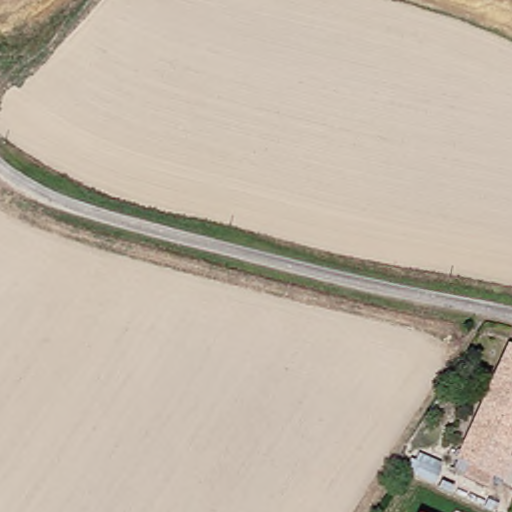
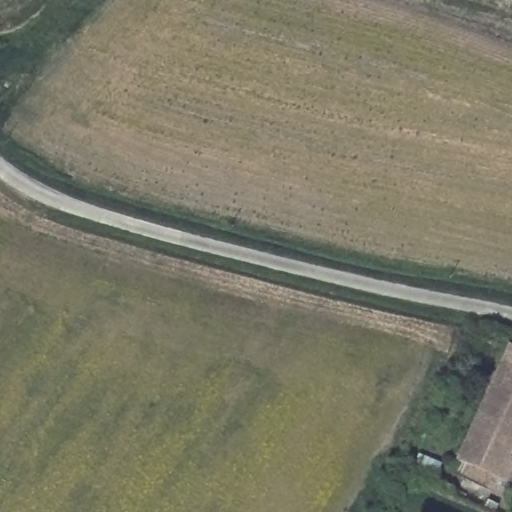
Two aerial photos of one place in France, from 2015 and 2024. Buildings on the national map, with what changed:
unchanged [(510,457),(512,458),(512,470),(506,482),(457,459),(509,344),(512,345),(512,452),(510,457)]

